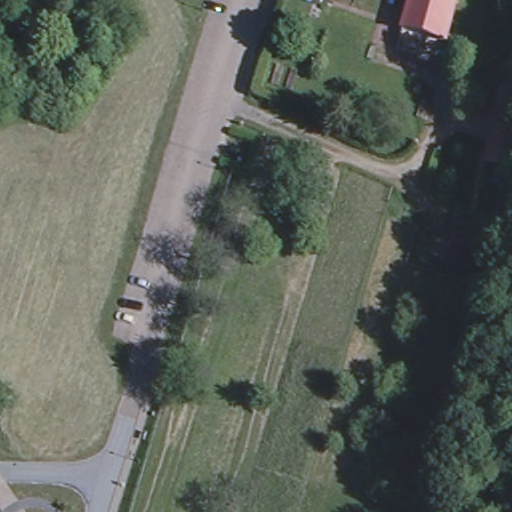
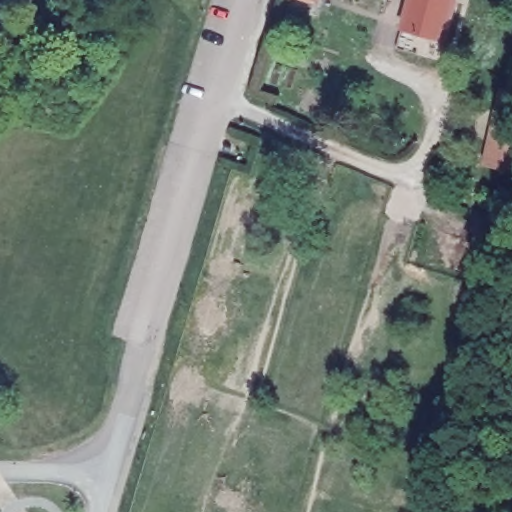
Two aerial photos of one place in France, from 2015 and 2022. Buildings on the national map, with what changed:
unchanged [(353,15),(358,0),(377,0),(371,21),(353,15)]
unchanged [(394,30),(404,0),(454,0),(441,44),(394,30)]

